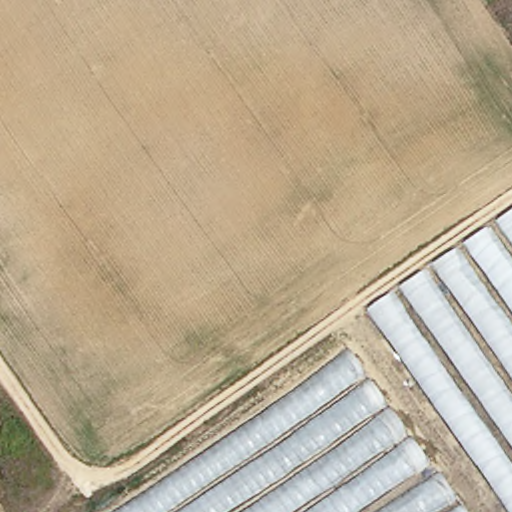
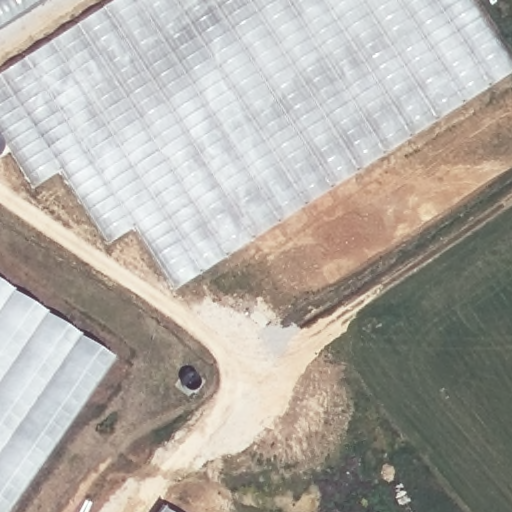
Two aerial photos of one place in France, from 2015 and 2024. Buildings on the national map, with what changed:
new [(0,28),(0,0),(45,0),(0,28)]
new [(512,71),(512,72),(176,290),(134,229),(106,245),(58,171),(31,189),(0,139),(0,74),(114,0),(467,0),(512,71)]
new [(5,512),(0,512),(0,285),(109,360),(5,512)]
new [(169,512),(160,512),(163,508),(169,512)]

